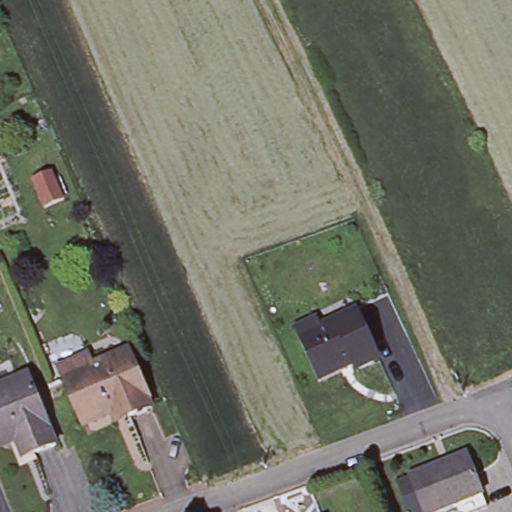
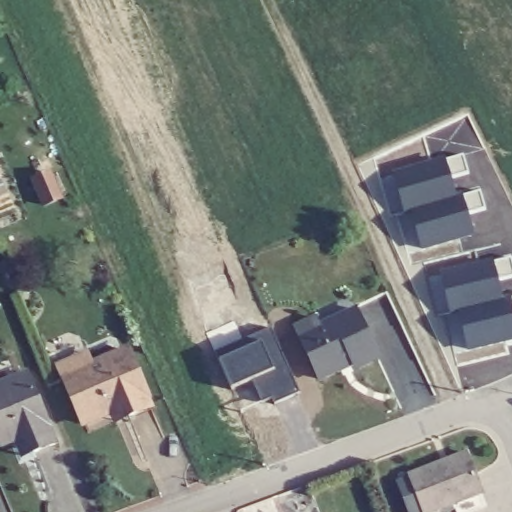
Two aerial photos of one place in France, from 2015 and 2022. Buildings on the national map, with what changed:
new [(447,157),(457,194),(464,192),(475,237),(422,249),(413,210),(403,212),(393,174),(447,157)]
new [(495,260),(503,301),(512,299),(512,340),(467,349),(461,312),(450,313),(443,271),(495,260)]
unchanged [(360,312),(380,356),(378,363),(373,366),(363,371),(357,366),(350,369),(330,326),(350,316),(360,312)]
unchanged [(300,328),(306,326),(318,320),(323,328),(330,326),(350,369),(330,378),(323,382),(300,328)]
new [(249,345),(245,337),(272,326),(299,391),(274,402),(270,396),(261,401),(253,377),(231,388),(220,360),(249,345)]
unchanged [(112,414),(85,425),(63,378),(58,367),(87,355),(92,366),(127,351),(152,407),(130,417),(116,423),(112,414)]
unchanged [(15,441),(2,446),(0,442),(0,394),(0,385),(2,383),(27,373),(55,444),(33,453),(22,457),(15,441)]
unchanged [(459,512),(455,502),(432,512),(423,512),(407,475),(464,452),(481,492),(487,505),(468,512),(459,512)]

